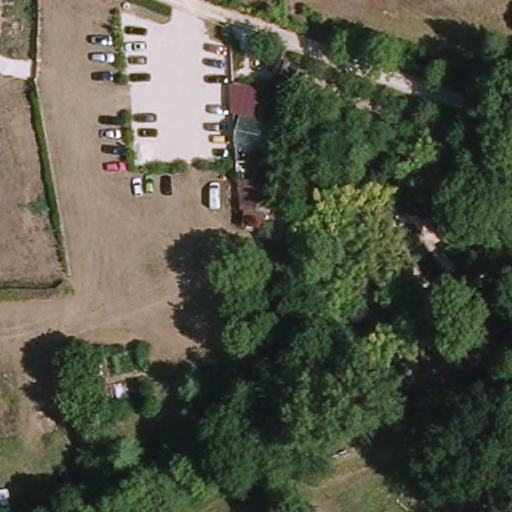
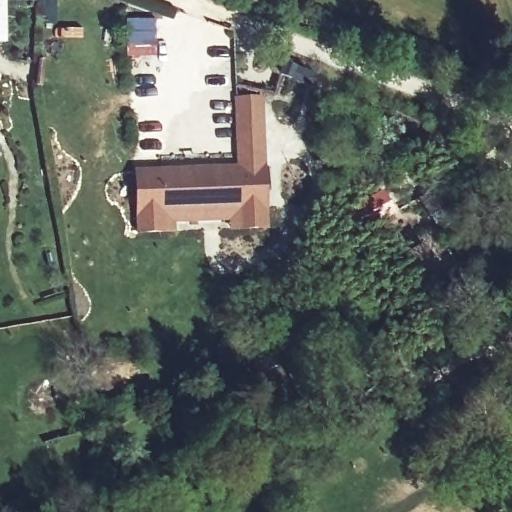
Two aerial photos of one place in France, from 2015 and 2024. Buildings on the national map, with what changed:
new [(260,2),(215,0),(260,0),(260,2)]
demolished [(260,141),(221,133),(230,80),(250,85),(246,105),(267,109),(260,141)]
new [(270,228),(230,231),(230,220),(177,223),(177,233),(137,236),(134,169),(238,164),(235,100),(264,95),(270,228)]
unchanged [(410,167),(417,182),(402,190),(395,175),(410,167)]
demolished [(252,196),(246,196),(245,211),(224,209),(223,172),(255,173),(252,196)]
unchanged [(326,197),(360,179),(365,190),(331,209),(326,197)]

